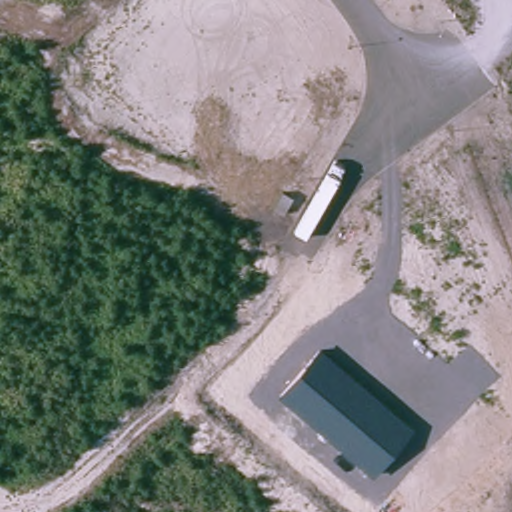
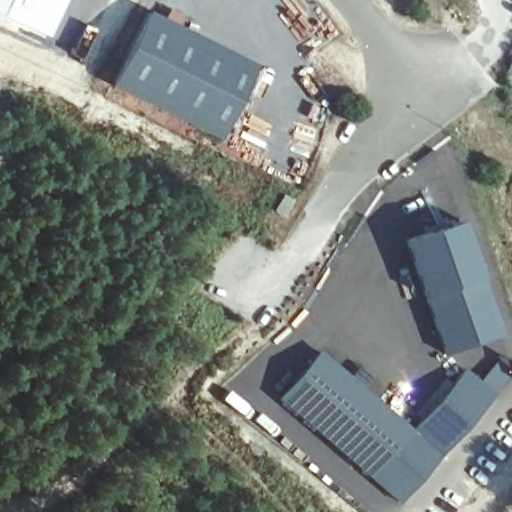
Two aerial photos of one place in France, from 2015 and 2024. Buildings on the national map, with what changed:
new [(0,17),(0,0),(64,0),(48,38),(0,17)]
new [(257,63),(222,137),(111,85),(148,10),(257,63)]
new [(462,219),(483,278),(422,300),(400,238),(462,219)]
new [(483,278),(501,332),(444,355),(422,300),(483,278)]
unchanged [(279,398),(320,351),(413,430),(374,480),(279,398)]
new [(465,367),(482,381),(488,375),(499,385),(493,391),(495,392),(402,503),(374,480),(413,430),(465,367)]

